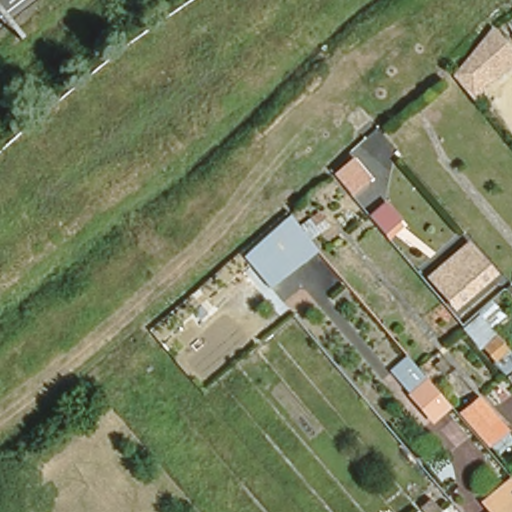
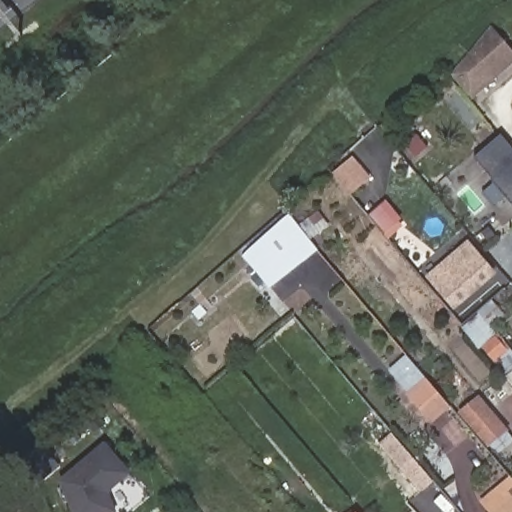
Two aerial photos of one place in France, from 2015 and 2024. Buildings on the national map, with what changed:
unchanged [(512,30),(505,16),(510,13),(512,12),(512,30)]
unchanged [(452,74),(492,27),(512,49),(512,69),(475,101),(452,74)]
new [(512,205),(491,180),(492,179),(475,158),(502,136),(512,148),(512,205)]
unchanged [(352,197),(332,172),(352,155),(372,179),(352,197)]
unchanged [(382,205),(398,225),(387,235),(372,215),(382,205)]
unchanged [(268,288),(242,255),(287,215),(295,224),(313,211),(323,226),(306,238),(317,250),(268,288)]
unchanged [(449,300),(431,275),(468,245),(487,269),(449,300)]
unchanged [(475,346),(492,333),(504,348),(487,361),(475,346)]
unchanged [(452,420),(436,435),(415,409),(395,384),(411,369),(452,420)]
unchanged [(512,374),(512,393),(502,381),(512,374)]
unchanged [(482,402),(511,437),(494,452),(464,416),(482,402)]
new [(119,512),(72,512),(60,481),(105,442),(132,474),(110,492),(119,512)]
unchanged [(508,479),(512,484),(512,512),(487,512),(480,503),(508,479)]
new [(29,512),(0,512),(0,506),(22,496),(29,512)]
demolished [(433,512),(417,512),(415,510),(423,502),(433,512)]

